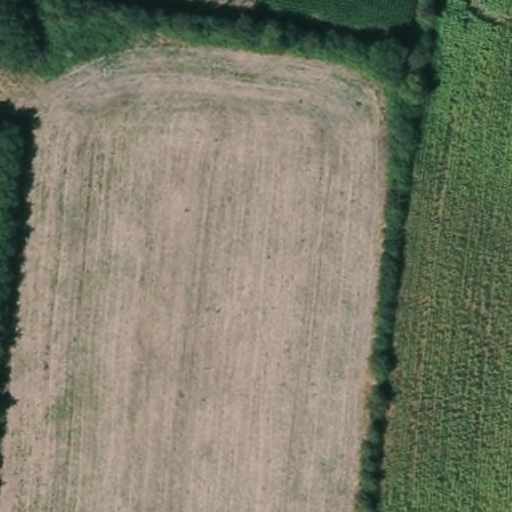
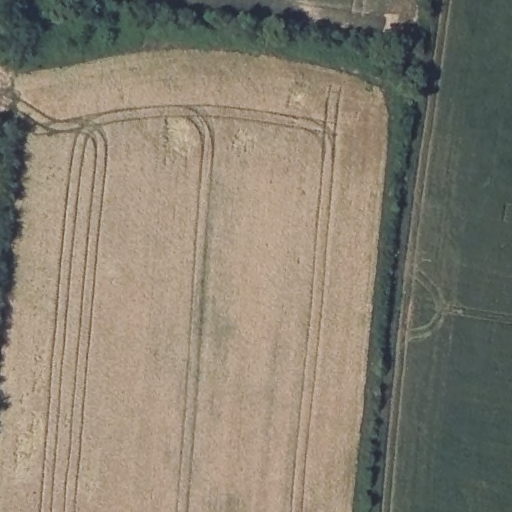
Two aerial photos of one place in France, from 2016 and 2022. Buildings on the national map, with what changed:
[]

